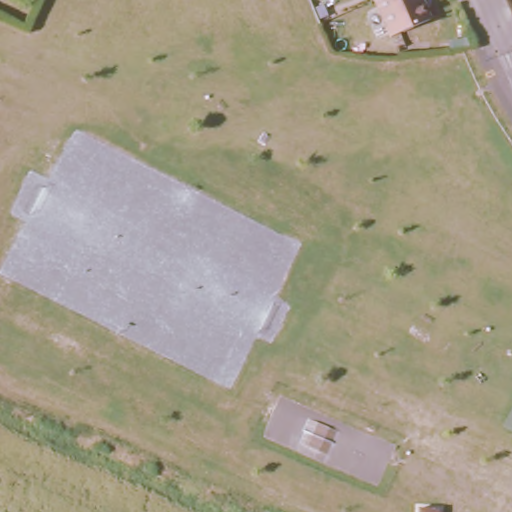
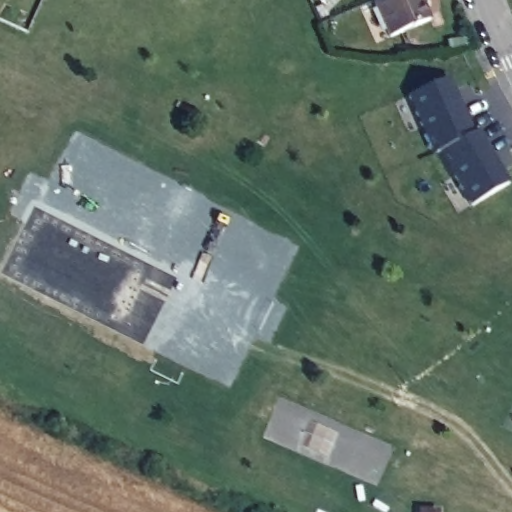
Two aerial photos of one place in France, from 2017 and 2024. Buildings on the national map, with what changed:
unchanged [(388,35),(372,0),(420,0),(429,17),(388,35)]
new [(439,154),(433,155),(408,97),(450,79),(474,134),(479,130),(511,184),(470,207),(439,154)]

